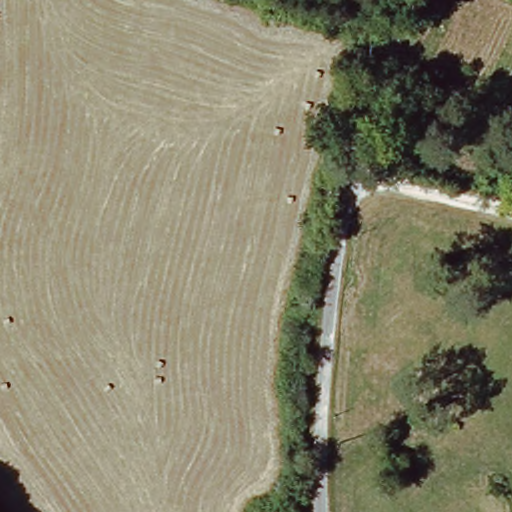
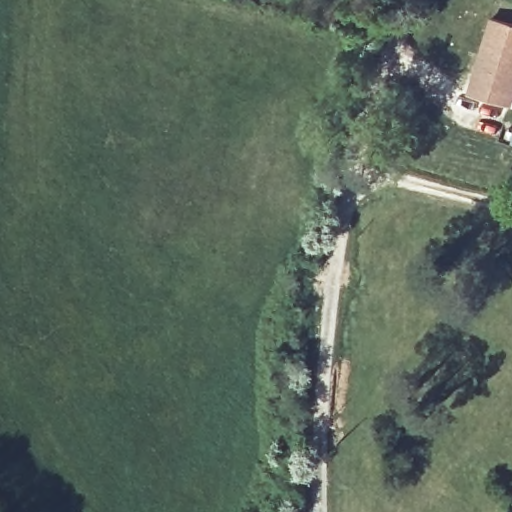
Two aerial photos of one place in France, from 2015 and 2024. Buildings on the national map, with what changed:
new [(512,26),(512,95),(509,105),(468,92),(491,19),(512,26)]

